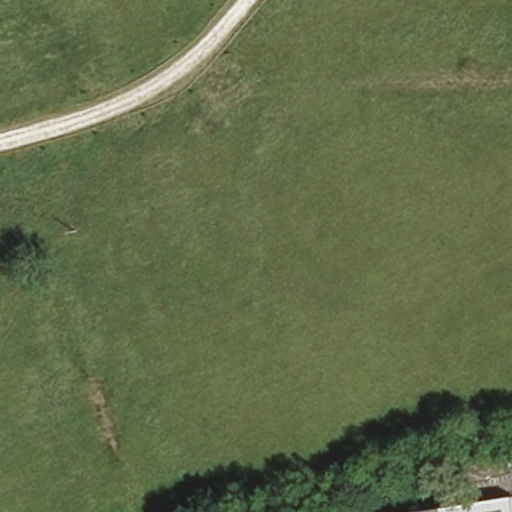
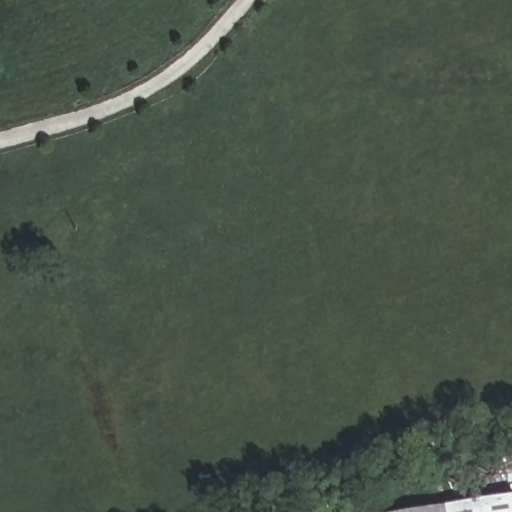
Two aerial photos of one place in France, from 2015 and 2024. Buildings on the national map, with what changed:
unchanged [(445,512),(448,512),(512,502),(512,512),(445,512)]

